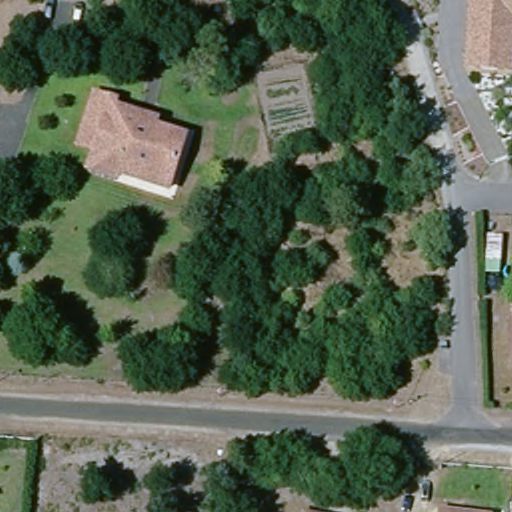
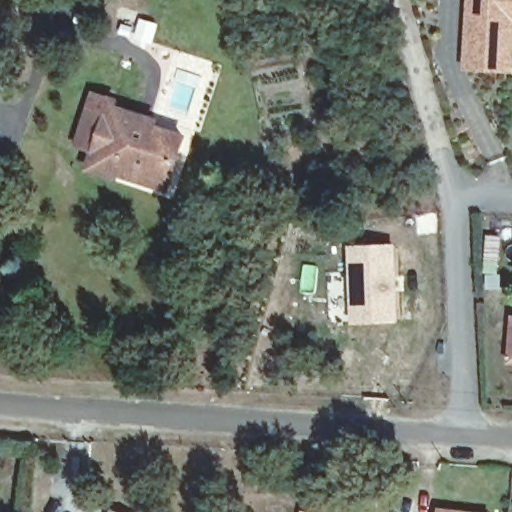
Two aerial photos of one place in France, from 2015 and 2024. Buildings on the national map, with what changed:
unchanged [(464,66),(468,0),(512,0),(512,69),(464,66)]
unchanged [(85,167),(90,147),(77,142),(96,92),(114,99),(111,106),(141,115),(140,122),(181,138),(166,188),(119,172),(116,178),(85,167)]
new [(351,325),(347,248),(395,245),(398,324),(351,325)]
unchanged [(508,361),(510,318),(512,318),(512,361),(508,361)]
unchanged [(481,512),(442,512),(442,510),(481,512)]
new [(116,512),(111,512),(111,511),(116,512)]
unchanged [(330,512),(296,512),(296,511),(330,512)]

